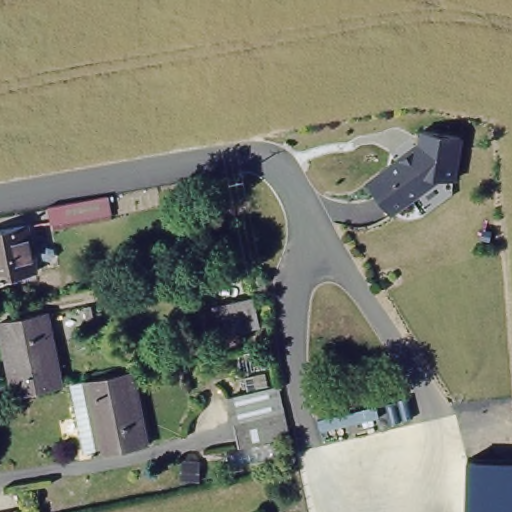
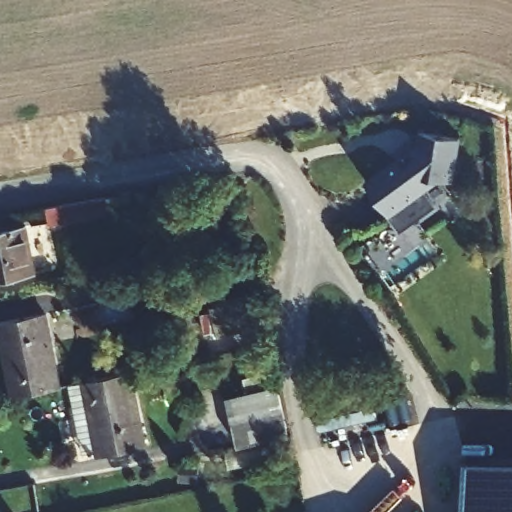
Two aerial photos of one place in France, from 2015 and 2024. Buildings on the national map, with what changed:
unchanged [(425,144),(427,130),(467,137),(458,180),(444,178),(393,213),(372,181),(425,144)]
unchanged [(103,193),(106,209),(46,220),(42,203),(103,193)]
unchanged [(33,275),(0,282),(0,235),(25,231),(33,275)]
unchanged [(255,291),(262,321),(219,329),(213,300),(255,291)]
unchanged [(57,388),(10,397),(0,344),(0,325),(43,318),(57,388)]
unchanged [(132,369),(143,419),(147,441),(102,449),(100,445),(87,378),(132,369)]
unchanged [(282,392),(250,397),(258,439),(240,443),(232,402),(230,394),(227,395),(223,380),(260,372),(263,387),(280,383),(282,392)]
unchanged [(87,378),(100,445),(86,449),(72,381),(87,378)]
unchanged [(282,392),(289,432),(267,437),(258,439),(250,397),(282,392)]
unchanged [(512,457),(512,512),(468,512),(468,454),(512,457)]

